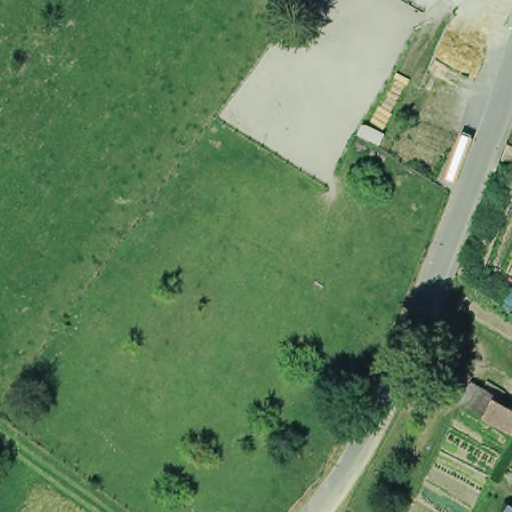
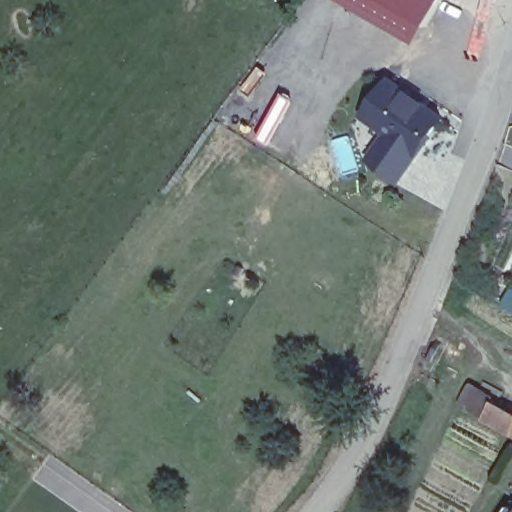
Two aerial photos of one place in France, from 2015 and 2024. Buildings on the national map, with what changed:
new [(419,44),(342,0),(442,0),(419,44)]
new [(392,81),(441,117),(429,133),(426,131),(415,145),(419,148),(400,175),(373,156),(392,130),(369,113),(392,81)]
unchanged [(512,402),(512,437),(479,416),(489,383),(512,402)]

